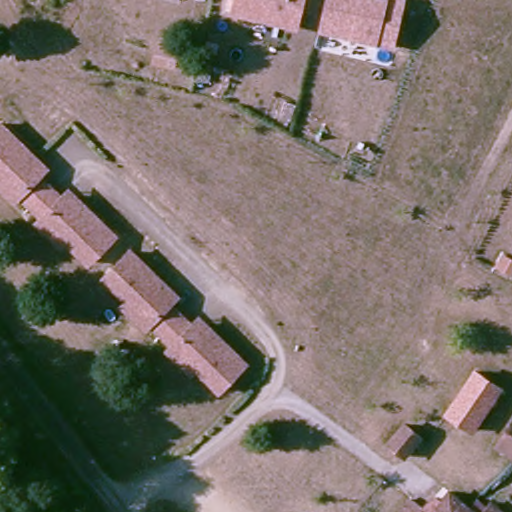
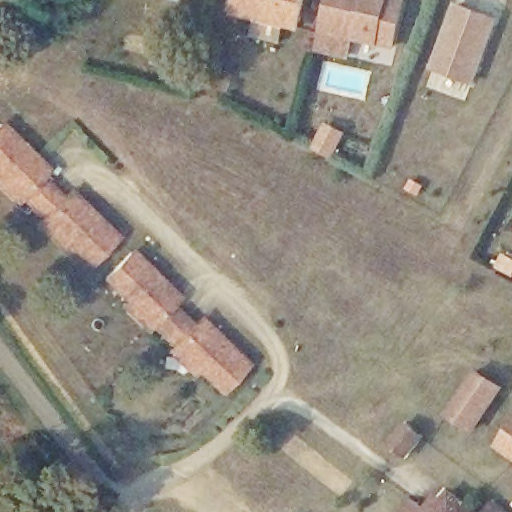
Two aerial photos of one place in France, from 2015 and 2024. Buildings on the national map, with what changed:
unchanged [(302,0),(294,29),(232,16),(236,0),(302,0)]
unchanged [(382,0),(401,4),(391,46),(319,30),(327,0),(382,0)]
new [(472,0),(499,10),(476,72),(437,58),(459,0),(472,0)]
unchanged [(31,222),(38,216),(19,192),(11,199),(0,184),(0,124),(6,119),(43,165),(36,171),(63,205),(71,199),(108,244),(80,267),(58,242),(51,247),(31,222)]
unchanged [(166,348),(173,342),(154,319),(146,326),(126,300),(134,293),(113,268),(142,246),(178,291),(170,297),(200,332),(206,326),(242,372),(214,395),(193,368),(186,374),(166,348)]
unchanged [(488,407),(487,409),(474,428),(454,414),(467,394),(453,385),(466,366),(500,389),(512,396),(512,397),(501,417),(488,407)]
unchanged [(512,419),(512,451),(498,442),(512,419)]
unchanged [(89,482),(78,491),(67,474),(75,466),(89,482)]
unchanged [(446,495),(468,512),(434,512),(446,495)]
unchanged [(428,512),(401,512),(410,498),(428,512)]
unchanged [(487,509),(491,512),(484,512),(487,509)]

